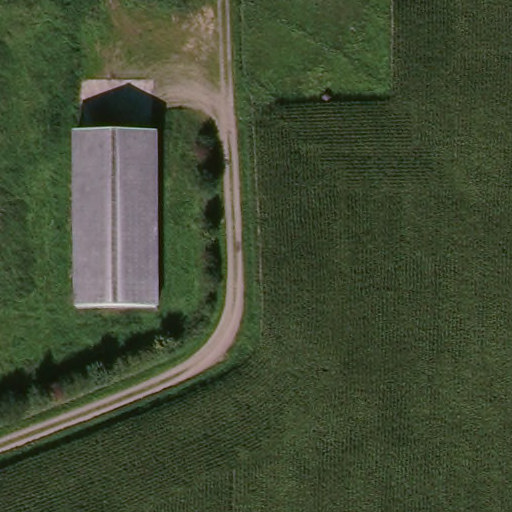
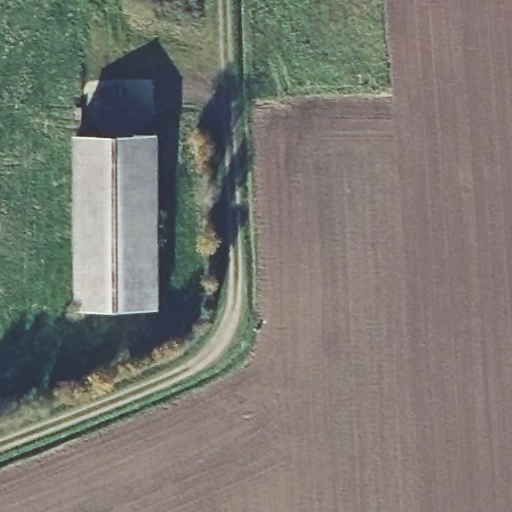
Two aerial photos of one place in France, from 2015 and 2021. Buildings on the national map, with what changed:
unchanged [(144,134),(157,308),(78,314),(64,140),(144,134)]

